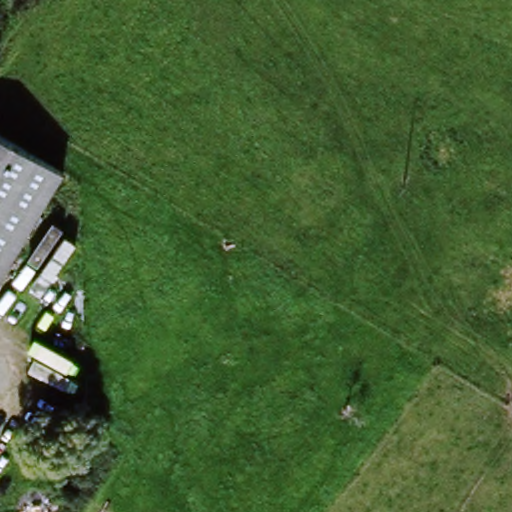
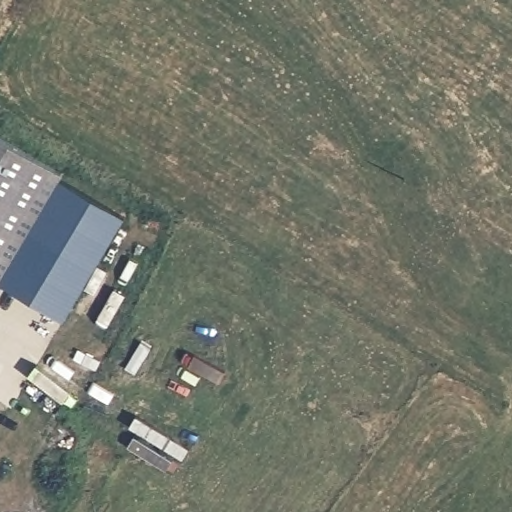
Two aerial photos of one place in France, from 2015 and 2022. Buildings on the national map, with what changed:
unchanged [(67,175),(3,281),(0,279),(0,135),(67,175)]
new [(127,216),(65,320),(3,281),(64,180),(127,216)]

